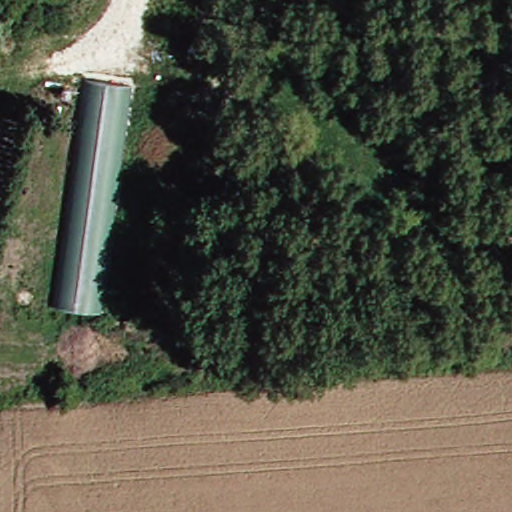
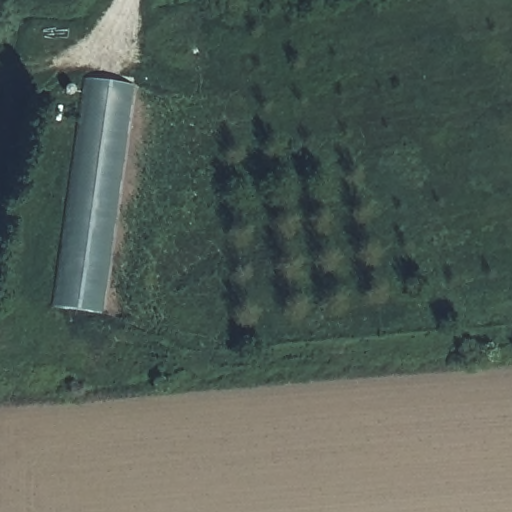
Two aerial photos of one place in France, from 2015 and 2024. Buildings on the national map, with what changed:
unchanged [(137,87),(139,87),(101,315),(55,308),(91,91),(93,80),(137,87)]

